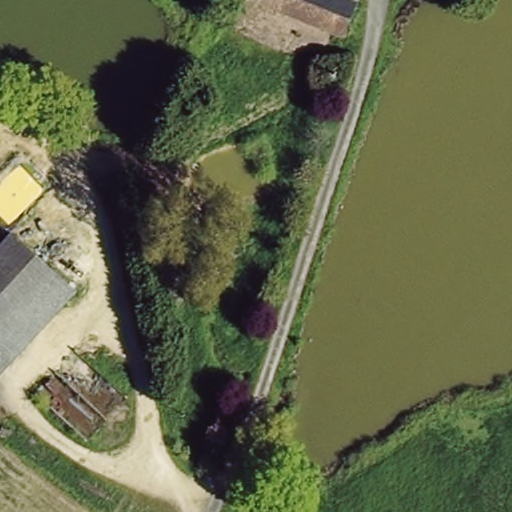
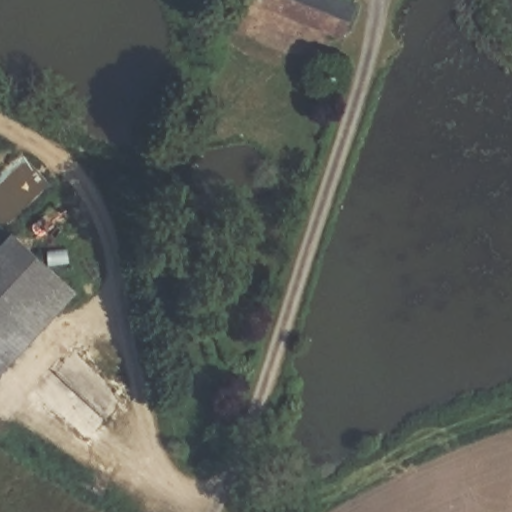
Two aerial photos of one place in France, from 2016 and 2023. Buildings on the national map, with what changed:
unchanged [(233,4),(234,0),(335,0),(366,14),(351,57),(233,4)]
unchanged [(77,289),(0,376),(0,242),(9,232),(77,289)]

